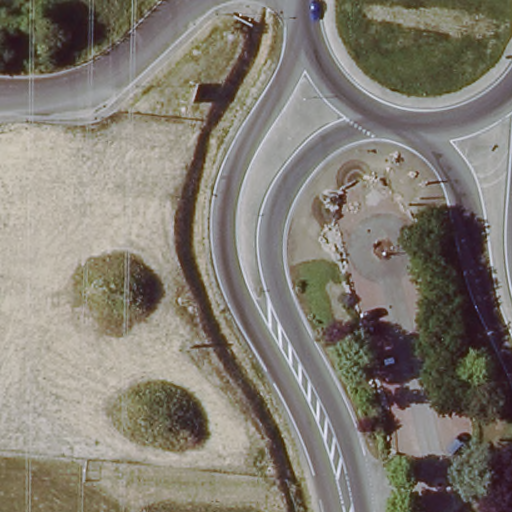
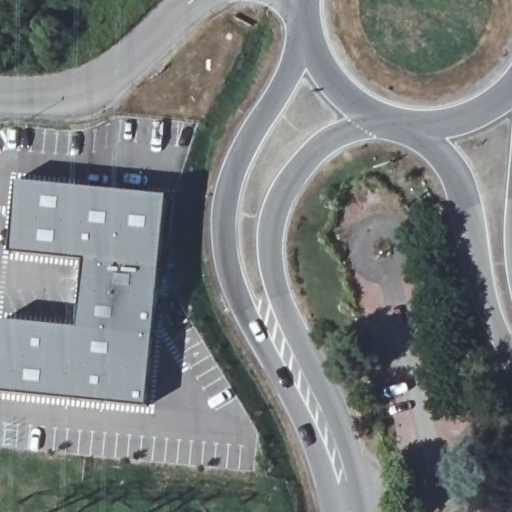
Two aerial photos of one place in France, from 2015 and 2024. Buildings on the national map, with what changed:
new [(169,196),(148,406),(0,391),(0,383),(4,319),(80,328),(90,259),(15,252),(19,181),(169,196)]

